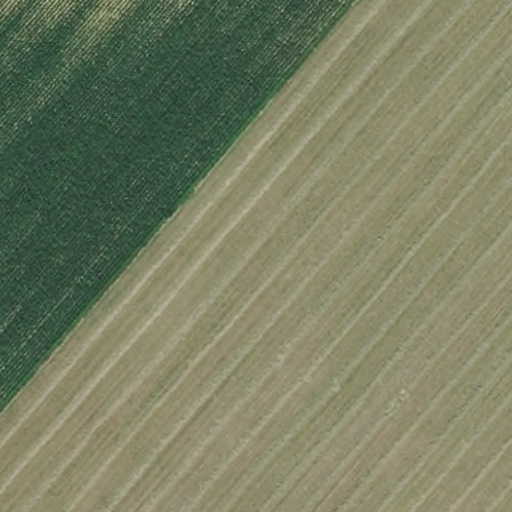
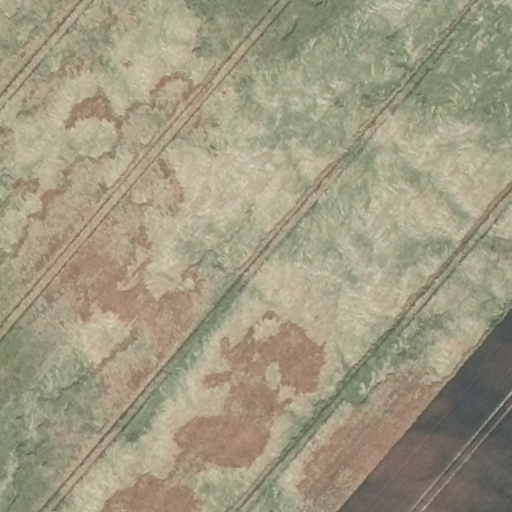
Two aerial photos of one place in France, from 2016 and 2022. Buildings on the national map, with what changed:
[]

